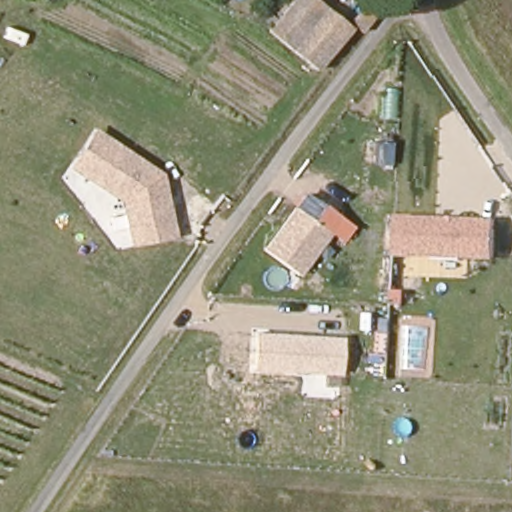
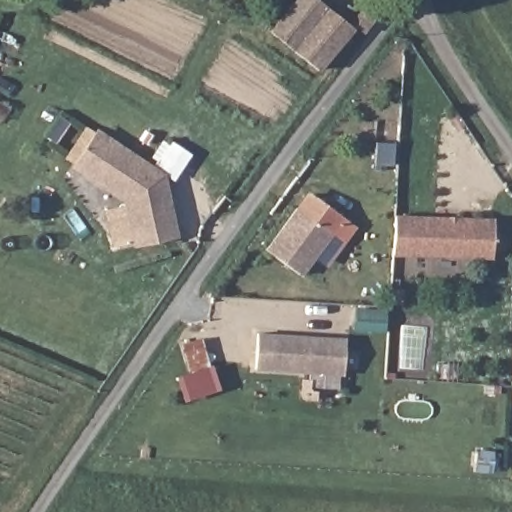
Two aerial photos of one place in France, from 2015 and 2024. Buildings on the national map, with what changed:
unchanged [(313,68),(269,28),(294,0),(314,0),(350,30),(313,68)]
unchanged [(358,32),(348,23),(363,2),(374,11),(358,32)]
unchanged [(131,246),(123,201),(70,169),(96,128),(164,173),(179,237),(131,246)]
unchanged [(295,207),(307,192),(356,228),(345,244),(333,235),(295,207)]
unchanged [(301,275),(263,247),(295,207),(333,235),(301,275)]
unchanged [(490,260),(390,254),(392,213),(492,219),(490,260)]
unchanged [(343,375),(253,371),(256,333),(345,337),(343,375)]
new [(181,346),(202,339),(220,391),(184,403),(176,377),(189,372),(181,346)]

